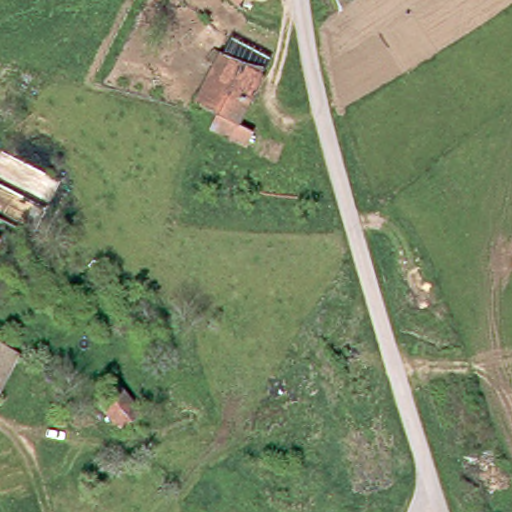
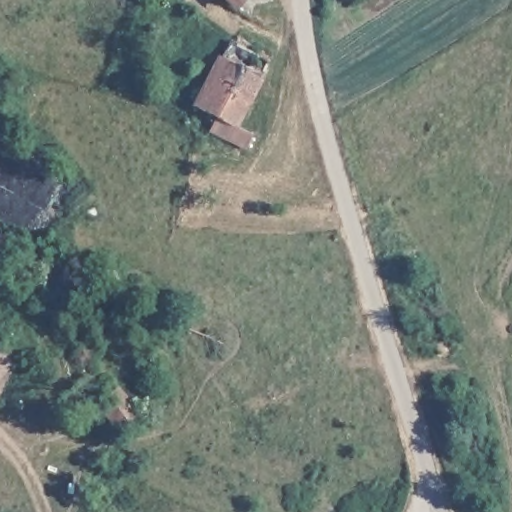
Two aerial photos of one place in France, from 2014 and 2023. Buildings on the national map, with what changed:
unchanged [(231,31),(264,50),(250,75),(219,54),(231,31)]
unchanged [(239,142),(219,131),(224,124),(207,112),(191,104),(219,54),(250,75),(227,116),(247,128),(239,142)]
unchanged [(12,350),(0,377),(0,345),(12,350)]
unchanged [(131,415),(114,426),(95,400),(112,387),(131,415)]

